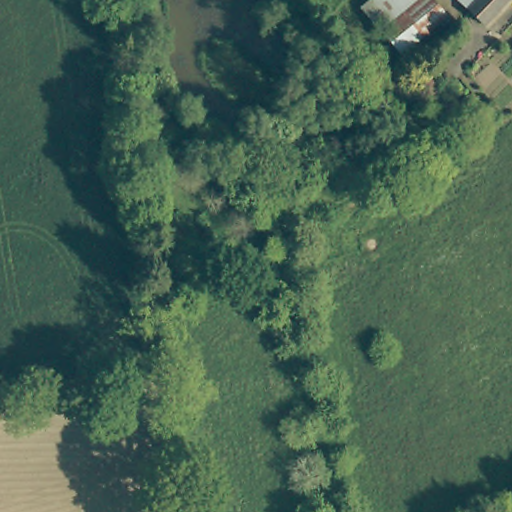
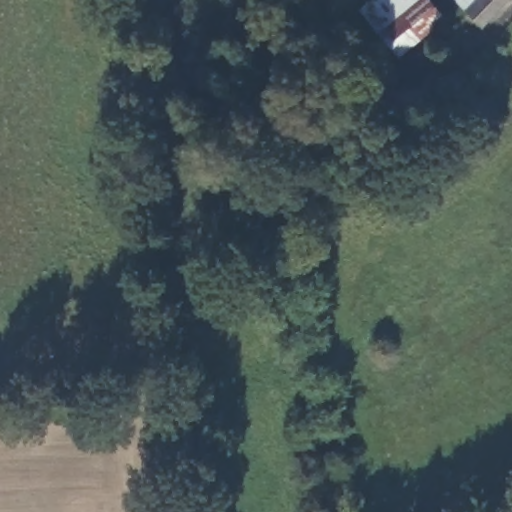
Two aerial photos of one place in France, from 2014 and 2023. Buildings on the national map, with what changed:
unchanged [(365,0),(423,0),(380,30),(361,3),(365,0)]
unchanged [(398,56),(380,30),(423,0),(432,0),(447,21),(398,56)]
unchanged [(459,0),(508,0),(486,18),(479,24),(468,10),(459,0)]

